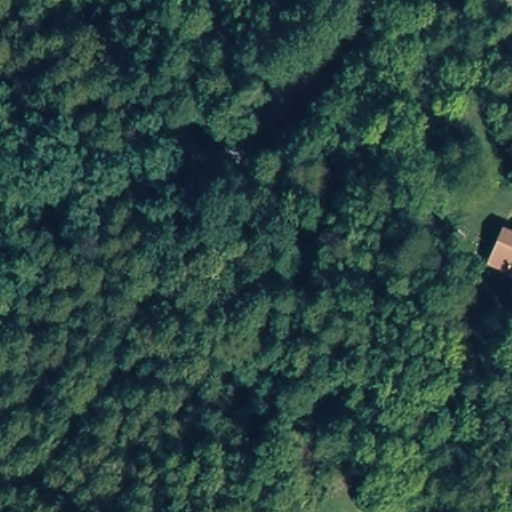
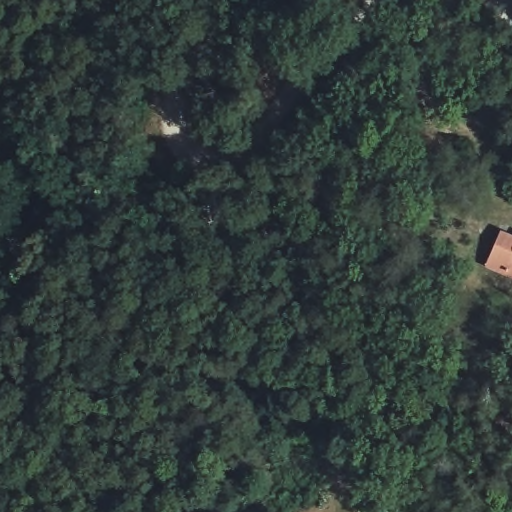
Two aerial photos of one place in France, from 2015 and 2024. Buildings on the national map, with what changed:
unchanged [(492,271),(506,236),(512,238),(512,280),(492,271)]

